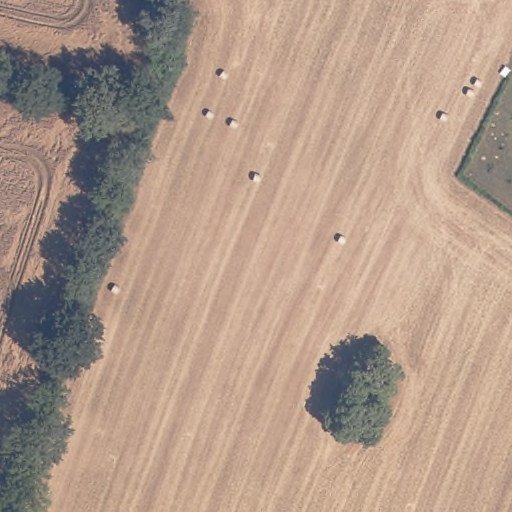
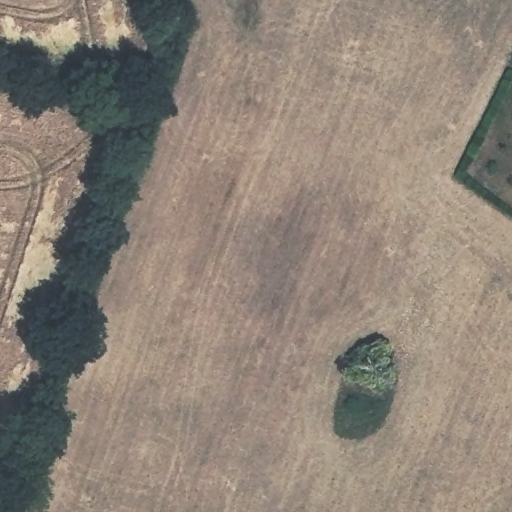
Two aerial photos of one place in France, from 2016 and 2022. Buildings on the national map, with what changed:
[]

